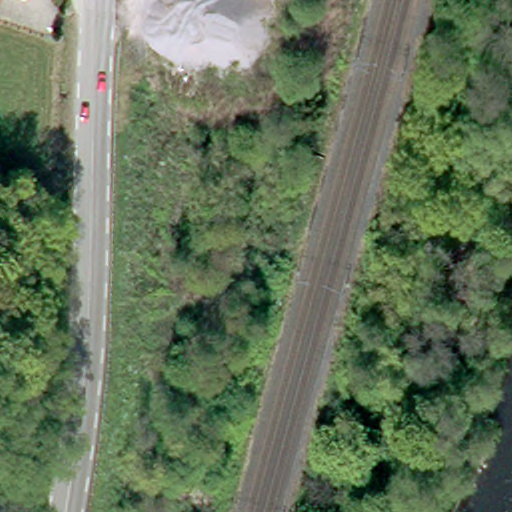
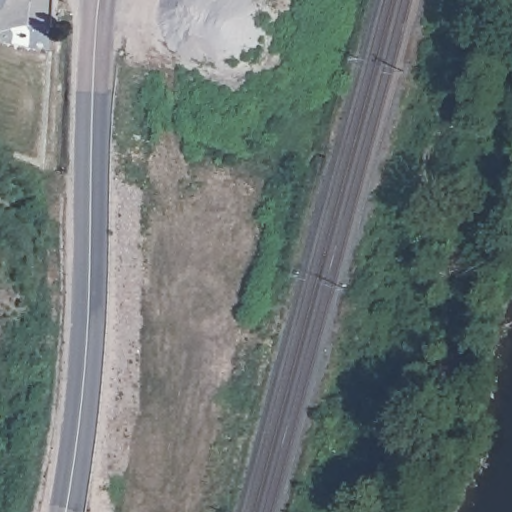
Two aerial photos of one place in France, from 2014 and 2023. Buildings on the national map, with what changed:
[]

